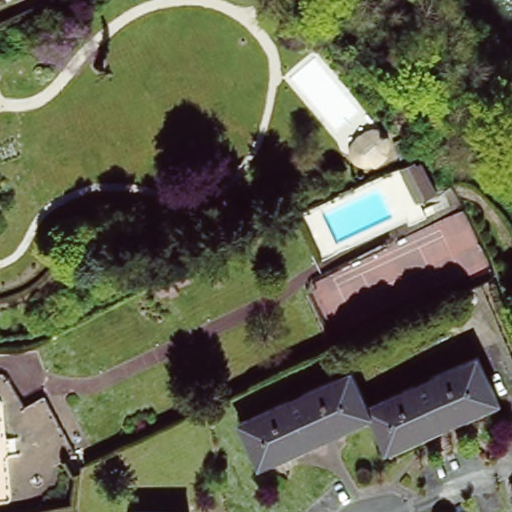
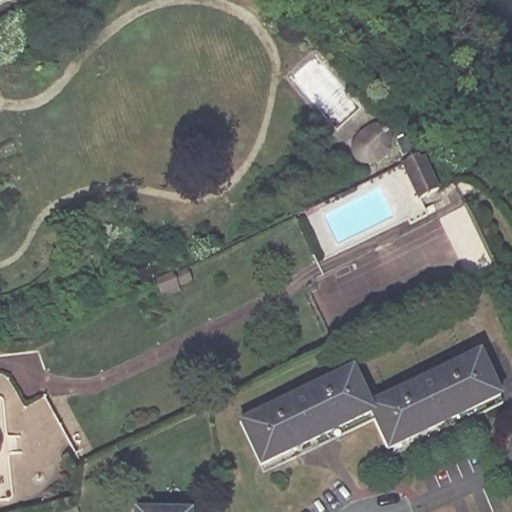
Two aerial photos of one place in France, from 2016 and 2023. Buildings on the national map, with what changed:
unchanged [(385,148),(360,164),(341,140),(372,122),(385,148)]
unchanged [(442,183),(417,197),(397,162),(425,150),(442,183)]
unchanged [(501,401),(390,453),(372,417),(263,467),(240,418),(352,366),(368,401),(477,350),(501,401)]
unchanged [(11,495),(0,494),(0,371),(1,371),(7,375),(25,406),(44,395),(85,465),(11,495)]
unchanged [(195,510),(195,512),(139,512),(139,508),(195,510)]

